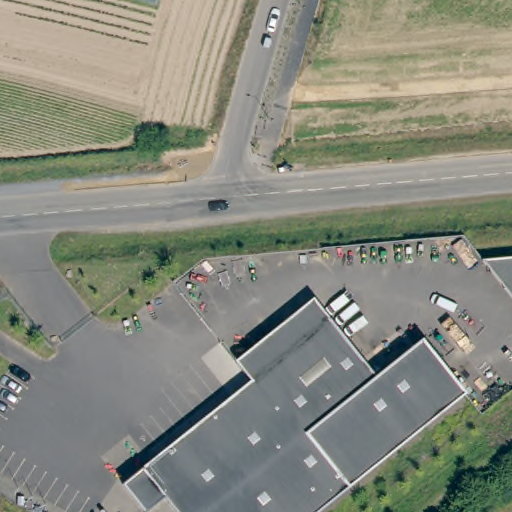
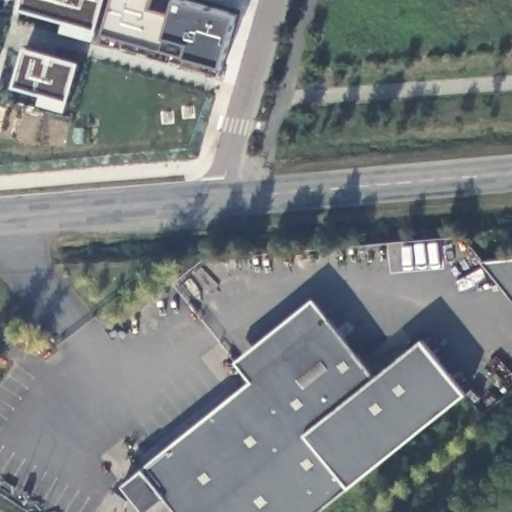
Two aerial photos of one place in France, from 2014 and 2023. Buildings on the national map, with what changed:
new [(24,0),(106,0),(95,39),(63,31),(65,21),(22,8),(24,0)]
new [(220,66),(223,78),(104,41),(107,31),(116,0),(154,0),(152,7),(174,15),(178,0),(186,0),(240,14),(220,66)]
new [(39,104),(42,95),(13,87),(25,45),(81,61),(67,112),(39,104)]
unchanged [(485,264),(512,261),(512,298),(485,264)]
unchanged [(317,297),(332,317),(254,380),(239,360),(317,297)]
unchanged [(426,338),(470,393),(322,512),(181,512),(169,497),(150,512),(148,512),(126,484),(127,482),(132,487),(149,473),(145,468),(254,380),(332,317),(380,376),(426,338)]

